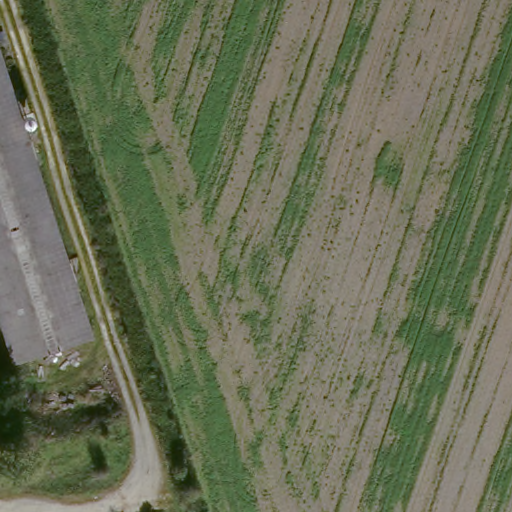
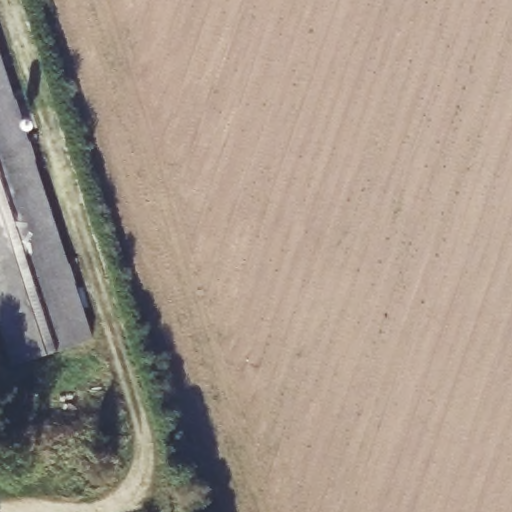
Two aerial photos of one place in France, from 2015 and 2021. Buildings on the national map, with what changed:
unchanged [(90,337),(16,367),(0,318),(0,66),(90,337)]

